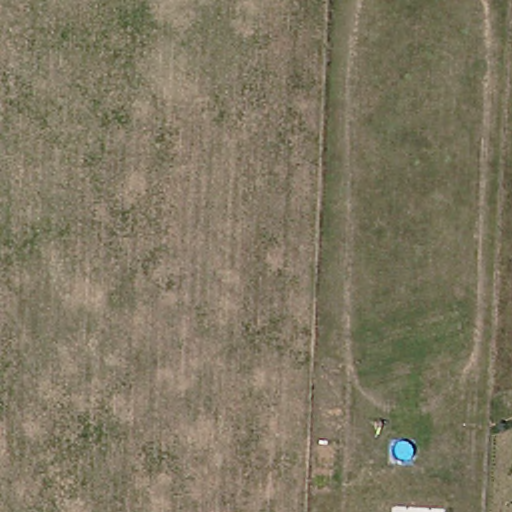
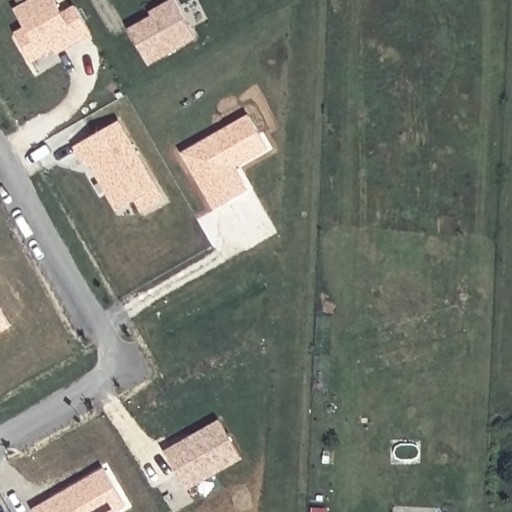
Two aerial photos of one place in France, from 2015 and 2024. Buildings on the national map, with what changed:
new [(25,27),(15,9),(31,0),(56,0),(62,12),(75,6),(92,35),(59,55),(56,51),(34,64),(16,32),(25,27)]
new [(176,0),(197,37),(150,64),(129,27),(176,0)]
new [(181,152),(249,114),(268,147),(236,166),(250,190),(215,210),(181,152)]
new [(144,213),(137,200),(119,211),(90,160),(85,162),(76,147),(120,122),(157,189),(164,202),(144,213)]
new [(11,327),(0,333),(0,308),(11,327)]
new [(220,420),(241,457),(187,488),(165,451),(220,420)]
new [(125,506),(114,512),(34,512),(105,471),(125,506)]

